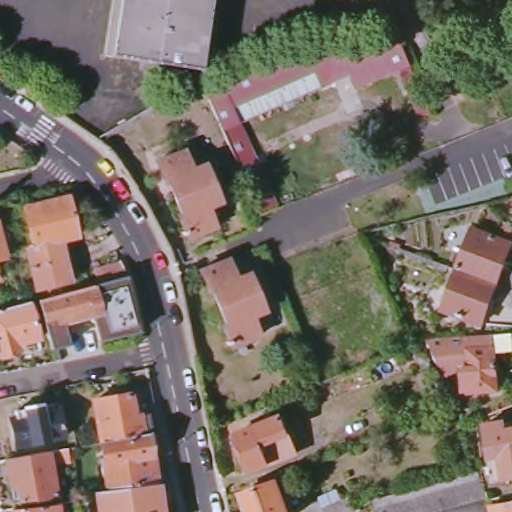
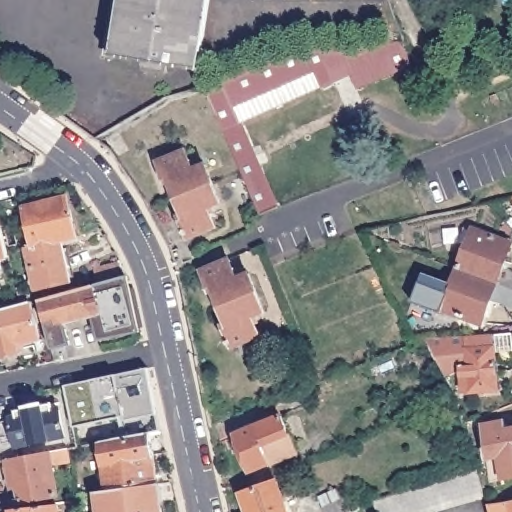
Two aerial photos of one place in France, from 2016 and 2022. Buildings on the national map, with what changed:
unchanged [(97,51),(106,0),(207,0),(195,67),(97,51)]
unchanged [(205,86),(293,51),(364,53),(400,42),(410,67),(358,89),(351,77),(244,124),(280,206),(257,215),(205,86)]
unchanged [(175,198),(169,182),(165,183),(157,161),(187,149),(194,168),(206,163),(214,183),(175,198)]
unchanged [(214,183),(221,203),(210,206),(217,226),(187,238),(179,216),(181,215),(175,198),(214,183)]
unchanged [(29,247),(34,246),(25,207),(70,196),(80,234),(63,238),(72,279),(39,288),(29,247)]
unchanged [(10,255),(0,258),(0,216),(0,215),(10,255)]
unchanged [(455,268),(470,228),(510,243),(500,265),(512,270),(512,290),(455,268)]
unchanged [(219,307),(214,292),(210,293),(202,270),(230,258),(237,277),(250,272),(258,292),(219,307)]
unchanged [(100,282),(96,268),(120,260),(128,275),(140,331),(100,339),(95,315),(67,322),(72,343),(50,348),(40,299),(100,282)]
unchanged [(512,290),(512,308),(487,298),(479,322),(440,308),(455,268),(512,290)]
unchanged [(219,307),(258,292),(266,312),(253,317),(260,334),(232,346),(224,325),(226,324),(222,312),(219,307)]
unchanged [(32,301),(40,339),(17,343),(19,355),(1,359),(0,354),(0,310),(22,304),(32,301)]
unchanged [(419,338),(487,334),(512,333),(512,350),(492,351),(495,388),(460,390),(459,366),(442,376),(419,338)]
unchanged [(100,443),(94,400),(130,393),(134,415),(140,414),(144,435),(100,443)]
unchanged [(7,418),(12,417),(12,411),(20,410),(20,406),(39,402),(40,406),(49,403),(50,410),(55,408),(60,437),(12,446),(7,418)]
unchanged [(217,444),(284,415),(289,429),(240,449),(220,457),(217,444)]
unchanged [(490,454),(487,423),(505,421),(506,429),(512,428),(512,475),(504,476),(492,478),(490,454)]
unchanged [(289,429),(302,461),(299,468),(255,485),(240,449),(289,429)]
unchanged [(144,435),(151,434),(157,483),(108,490),(100,443),(144,435)]
unchanged [(72,448),(75,460),(65,462),(47,465),(52,497),(17,503),(12,481),(5,481),(2,459),(62,449),(72,448)]
unchanged [(438,479),(465,471),(477,465),(487,500),(442,512),(376,512),(372,499),(438,479)]
unchanged [(279,480),(290,512),(251,512),(244,493),(279,480)]
unchanged [(161,512),(101,512),(98,491),(108,490),(157,483),(161,512)]
unchanged [(355,512),(328,512),(349,498),(355,512)]
unchanged [(512,503),(512,512),(490,512),(489,506),(512,503)]
unchanged [(52,505),(53,512),(8,512),(7,510),(52,505)]

